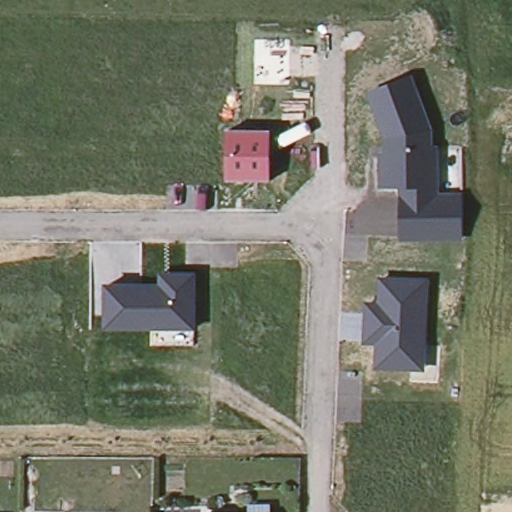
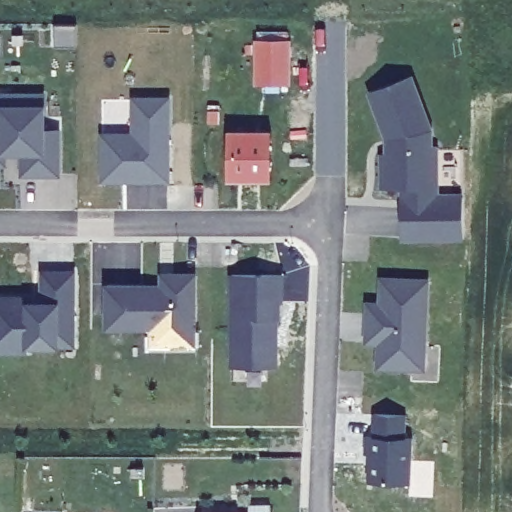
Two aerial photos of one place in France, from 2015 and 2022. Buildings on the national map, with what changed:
unchanged [(256,83),(256,39),(289,39),(288,84),(256,83)]
unchanged [(413,75),(433,127),(435,147),(439,148),(437,194),(465,194),(462,240),(397,242),(398,191),(381,189),(380,153),(384,152),(383,137),(367,95),(413,75)]
new [(1,94),(42,94),(42,130),(57,130),(57,174),(21,174),(21,146),(4,146),(4,163),(0,163),(0,108),(1,108),(1,94)]
new [(131,130),(130,95),(170,95),(170,182),(100,182),(99,131),(131,130)]
unchanged [(228,179),(229,130),(271,131),(270,181),(228,179)]
new [(28,347),(28,353),(0,353),(0,293),(40,292),(40,269),(76,270),(75,347),(28,347)]
unchanged [(176,286),(176,272),(201,272),(200,325),(115,322),(116,283),(176,286)]
new [(285,273),(285,301),(282,301),(282,319),(278,318),(279,366),(229,366),(229,273),(285,273)]
unchanged [(430,279),(425,376),(374,372),(375,347),(361,346),(362,301),(380,304),(381,280),(430,279)]
new [(405,437),(412,437),(411,483),(367,481),(368,452),(365,452),(365,435),(372,435),(373,414),(406,414),(405,437)]
unchanged [(250,506),(271,505),(271,512),(250,512),(250,506)]

